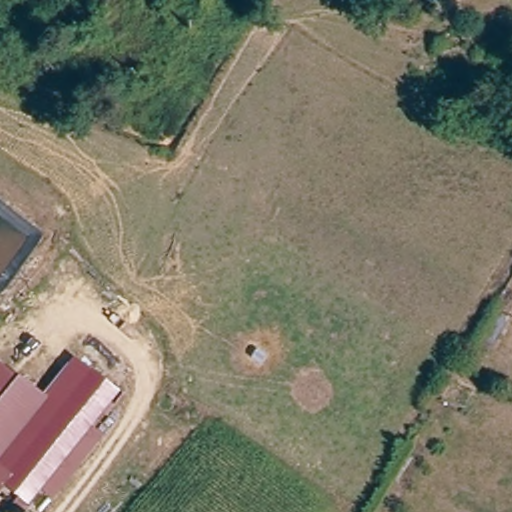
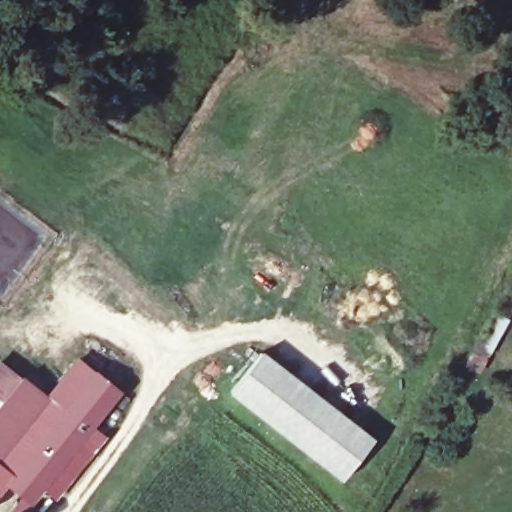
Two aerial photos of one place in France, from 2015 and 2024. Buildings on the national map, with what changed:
new [(229,394),(262,352),(372,438),(340,480),(229,394)]
unchanged [(1,399),(27,368),(52,386),(78,356),(122,390),(26,512),(10,512),(6,509),(17,496),(3,484),(0,488),(0,398),(1,399)]

